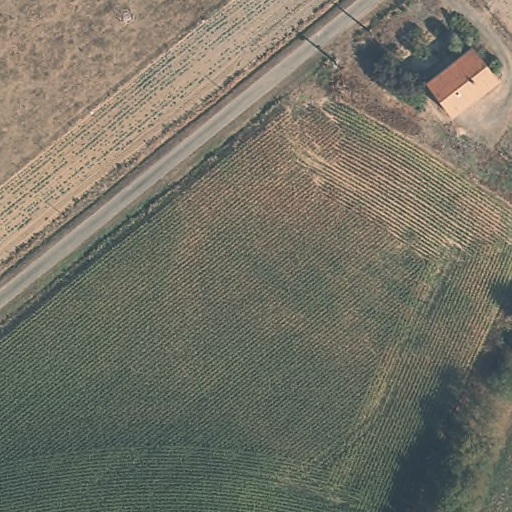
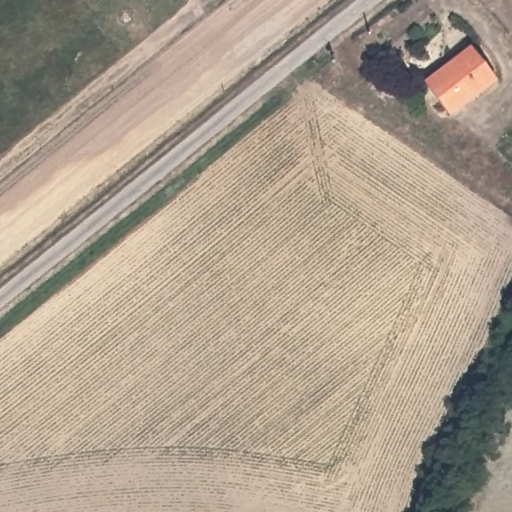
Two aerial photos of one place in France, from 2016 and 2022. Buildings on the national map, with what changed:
unchanged [(495,76),(451,112),(426,81),(470,44),(495,76)]

